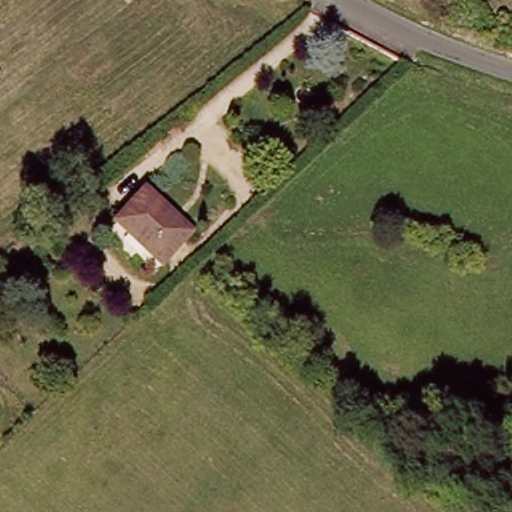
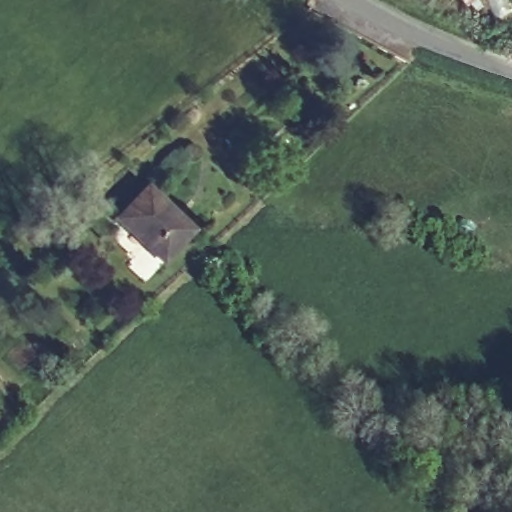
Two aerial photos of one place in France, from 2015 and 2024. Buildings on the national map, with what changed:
unchanged [(149,191),(196,233),(189,241),(165,268),(117,225),(145,195),(149,191)]

